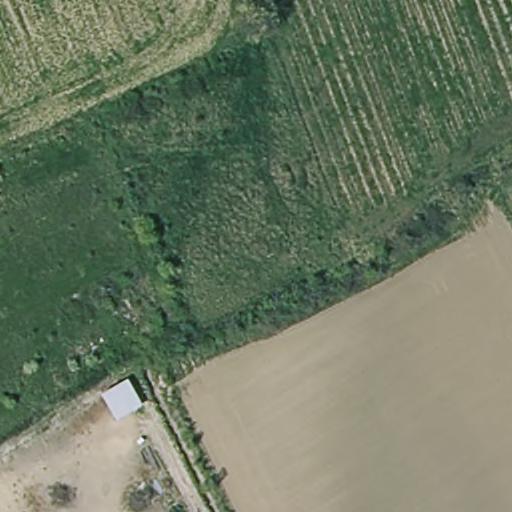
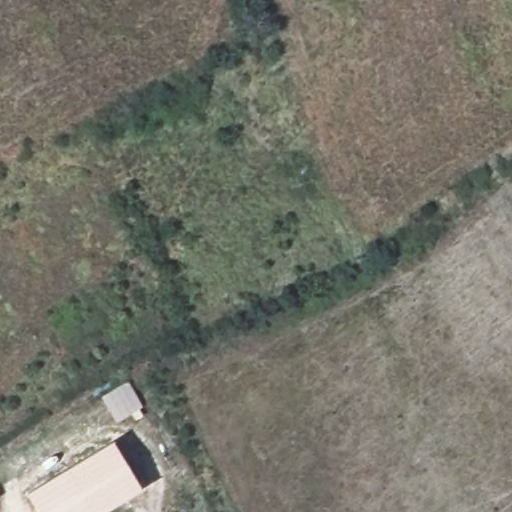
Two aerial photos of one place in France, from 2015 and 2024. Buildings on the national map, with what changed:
new [(142,411),(114,424),(101,395),(128,382),(142,411)]
new [(143,490),(104,512),(39,512),(28,493),(113,441),(143,490)]

